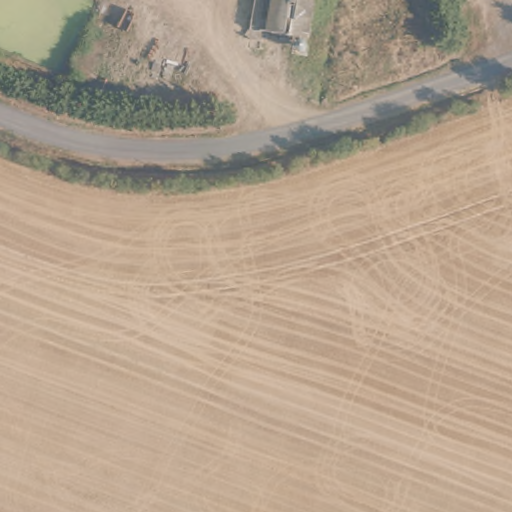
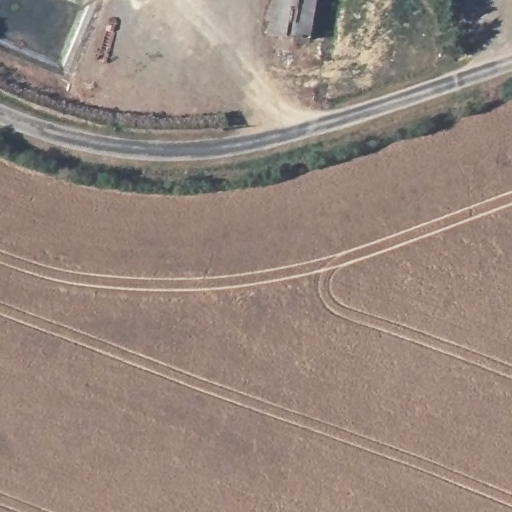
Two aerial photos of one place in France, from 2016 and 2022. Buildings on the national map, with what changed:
unchanged [(304,40),(262,32),(268,0),(311,0),(304,40)]

